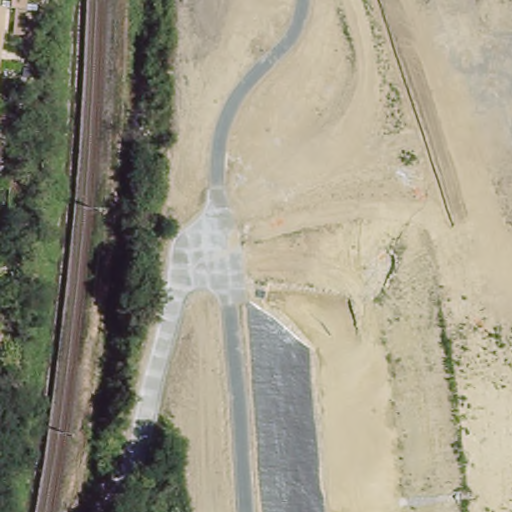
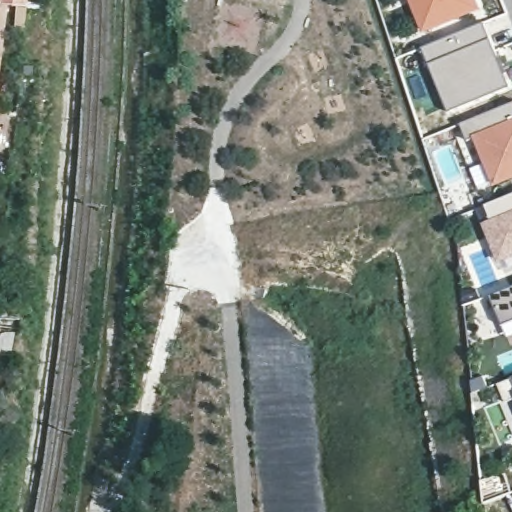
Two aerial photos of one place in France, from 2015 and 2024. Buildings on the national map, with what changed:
unchanged [(0,60),(0,4),(0,0),(6,0),(5,5),(11,5),(5,60),(0,101),(0,60)]
new [(415,14),(409,0),(475,0),(478,8),(438,25),(422,31),(415,14)]
unchanged [(40,10),(40,33),(31,32),(32,9),(40,10)]
new [(483,23),(510,87),(448,113),(439,90),(454,84),(445,60),(428,65),(422,49),(483,23)]
new [(512,104),(512,178),(495,185),(483,155),(474,158),(461,124),(512,104)]
unchanged [(0,126),(0,110),(2,110),(0,126)]
new [(492,218),(487,206),(512,196),(512,268),(505,271),(485,221),(492,218)]
new [(494,307),(490,297),(512,288),(512,333),(505,336),(494,307)]

